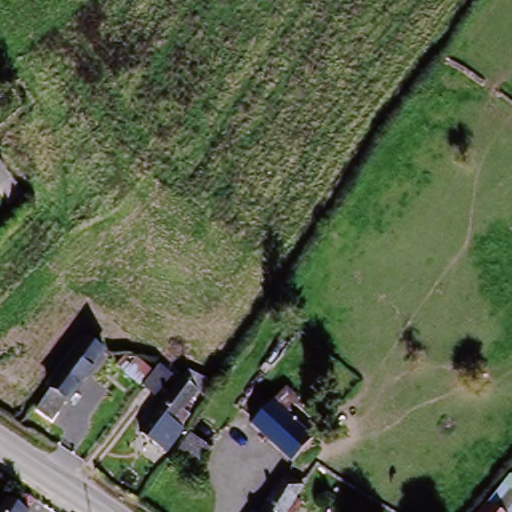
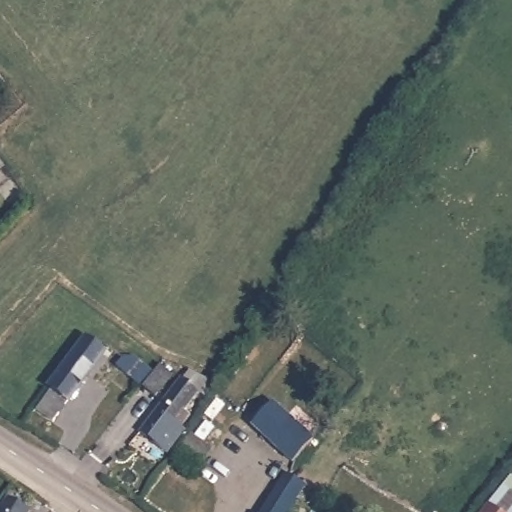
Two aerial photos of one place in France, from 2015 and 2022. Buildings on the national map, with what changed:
unchanged [(7,176),(0,181),(0,167),(7,176)]
unchanged [(174,463),(192,438),(264,340),(275,324),(294,337),(295,339),(284,354),(254,396),(212,453),(194,478),(174,463)]
unchanged [(50,392),(85,346),(102,357),(52,427),(35,416),(52,394),(50,392)]
unchanged [(155,399),(142,388),(117,370),(125,360),(130,360),(151,376),(156,370),(170,381),(155,399)]
unchanged [(178,435),(182,438),(180,441),(169,458),(158,450),(140,437),(147,428),(141,423),(150,412),(156,417),(180,384),(197,396),(182,416),(189,420),(178,435)]
unchanged [(284,393),(328,431),(308,453),(265,416),(284,393)]
unchanged [(507,486),(509,483),(512,486),(512,512),(488,512),(487,511),(507,486)]
unchanged [(299,500),(292,512),(266,512),(280,488),(299,500)]
unchanged [(12,512),(6,512),(8,509),(12,512)]
unchanged [(488,512),(487,512),(487,511),(488,512)]

